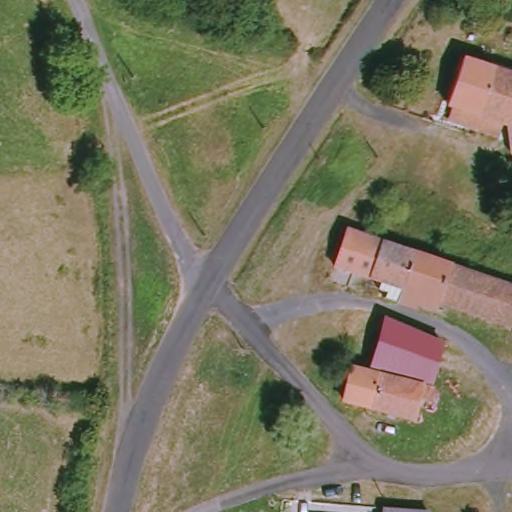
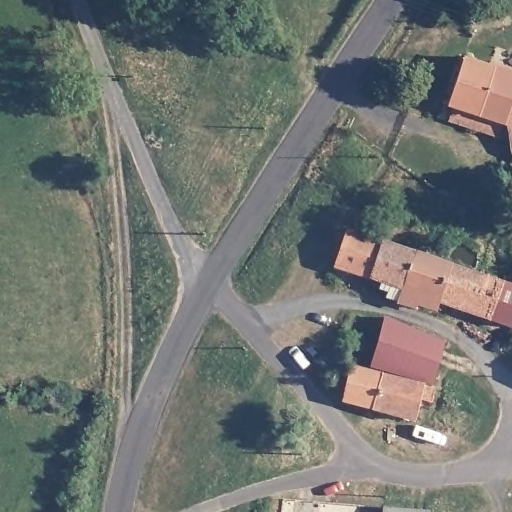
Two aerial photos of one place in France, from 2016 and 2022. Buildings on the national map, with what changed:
unchanged [(442,113),(437,111),(455,56),(512,74),(512,159),(502,155),(508,133),(492,128),(488,143),(438,125),(442,113)]
unchanged [(372,280),(332,268),(342,231),(383,242),(372,280)]
unchanged [(399,303),(384,298),(388,284),(372,280),(383,242),(415,252),(399,303)]
unchanged [(442,303),(422,298),(418,308),(399,303),(415,252),(453,264),(442,303)]
unchanged [(495,317),(442,303),(453,264),(506,279),(495,317)]
unchanged [(506,279),(512,281),(512,323),(495,317),(506,279)]
unchanged [(385,331),(388,322),(453,344),(443,387),(373,365),(385,331)]
unchanged [(347,405),(355,369),(387,377),(377,413),(347,405)]
unchanged [(387,377),(445,393),(442,408),(428,405),(423,424),(377,413),(387,377)]
unchanged [(382,507),(427,510),(427,512),(381,512),(382,507)]

